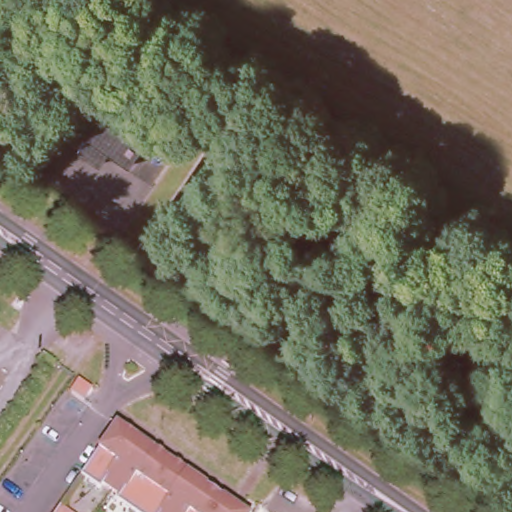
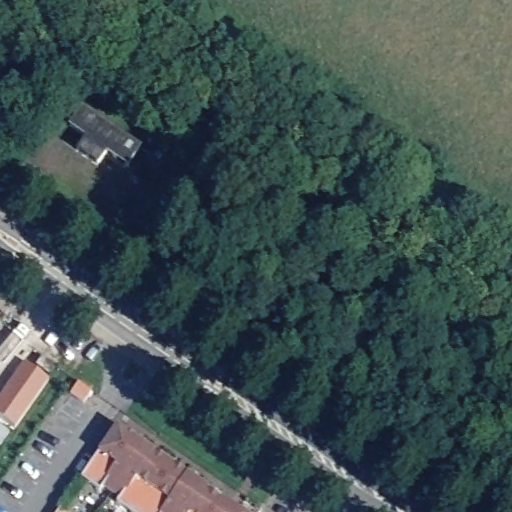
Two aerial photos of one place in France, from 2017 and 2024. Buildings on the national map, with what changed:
unchanged [(69,152),(83,134),(66,123),(79,104),(137,146),(124,163),(104,149),(91,168),(69,152)]
new [(48,380),(13,431),(0,421),(0,396),(23,363),(48,380)]
unchanged [(78,383),(91,393),(84,404),(70,395),(78,383)]
unchanged [(122,499),(105,487),(101,493),(81,480),(118,427),(125,433),(134,439),(138,440),(137,442),(158,455),(158,454),(160,456),(169,462),(176,466),(174,467),(179,471),(188,476),(189,477),(190,476),(211,490),(210,492),(211,493),(220,498),(226,501),(226,500),(233,505),(241,510),(243,512),(129,512),(118,504),(122,499)]
unchanged [(65,512),(61,512),(62,510),(65,512)]

